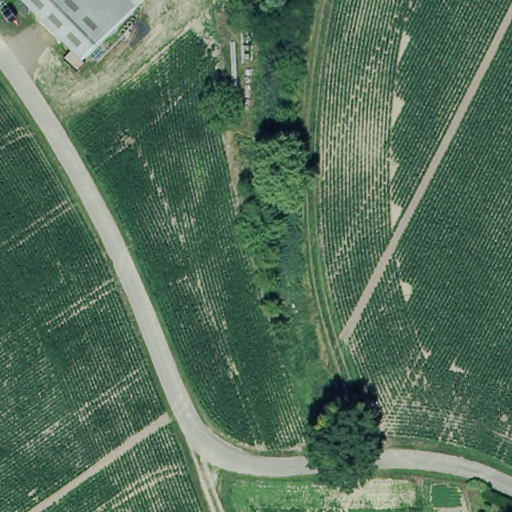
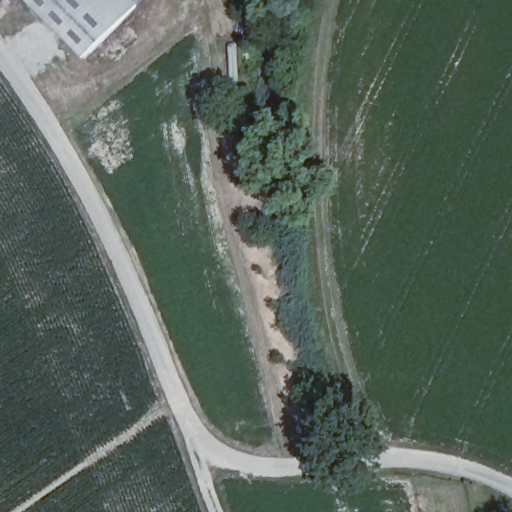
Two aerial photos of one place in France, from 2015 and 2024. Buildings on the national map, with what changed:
unchanged [(85,61),(25,0),(146,0),(85,61)]

